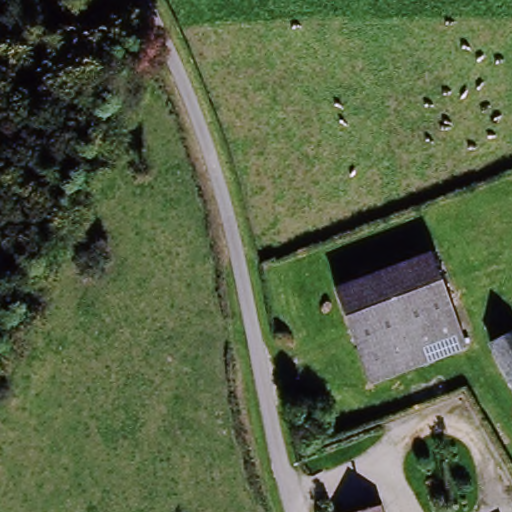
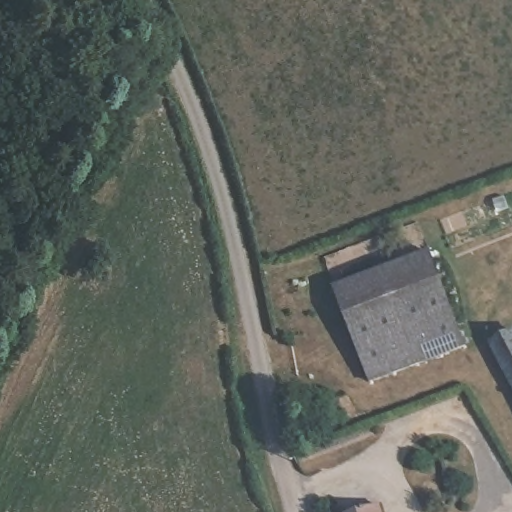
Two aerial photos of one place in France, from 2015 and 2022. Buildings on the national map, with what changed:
unchanged [(341,291),(433,258),(464,353),(370,386),(341,291)]
unchanged [(512,334),(512,388),(491,345),(512,334)]

